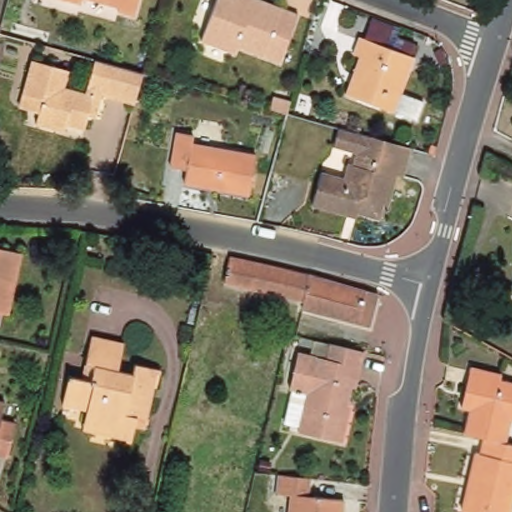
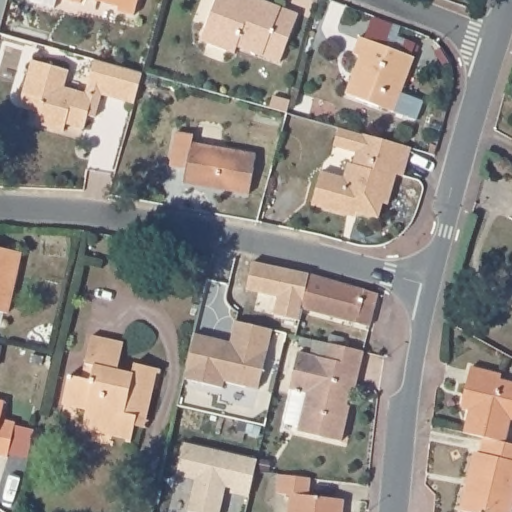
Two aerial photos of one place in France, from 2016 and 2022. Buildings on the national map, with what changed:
unchanged [(71,0),(83,0),(82,3),(71,0)]
unchanged [(119,12),(120,7),(93,0),(141,0),(136,17),(119,12)]
unchanged [(281,64),(239,47),(236,54),(202,41),(218,0),(262,0),(300,14),(281,64)]
unchanged [(354,52),(360,36),(413,57),(393,111),(345,92),(360,55),(354,52)]
unchanged [(21,95),(30,62),(66,72),(62,88),(84,94),(93,60),(127,70),(139,73),(130,105),(99,96),(93,119),(86,117),(82,130),(65,125),(62,134),(35,126),(38,114),(17,109),(21,95)]
unchanged [(291,101),(288,113),(270,108),(273,96),(291,101)]
unchanged [(320,171),(342,175),(351,151),(335,145),(340,130),(408,145),(383,210),(365,219),(311,202),(320,171)]
unchanged [(191,135),(190,144),(252,155),(245,195),(180,184),(182,170),(167,167),(174,132),(191,135)]
unchanged [(19,255),(5,315),(0,314),(0,250),(19,255)]
unchanged [(230,257),(303,275),(385,296),(378,319),(361,315),(358,324),(302,308),(303,302),(224,283),(230,257)]
new [(218,340),(230,344),(235,322),(272,331),(257,391),(223,382),(221,390),(183,380),(194,335),(218,340)]
unchanged [(299,430),(296,428),(306,390),(288,385),(297,350),(325,357),(329,342),(363,351),(354,386),(350,385),(342,413),(345,414),(343,423),(338,440),(299,430)]
unchanged [(77,389),(89,347),(120,355),(112,381),(127,385),(130,372),(155,378),(144,427),(134,425),(127,450),(106,445),(107,440),(79,434),(84,415),(59,409),(64,386),(77,389)]
unchanged [(504,442),(484,437),(465,433),(470,409),(461,406),(465,392),(471,366),(500,374),(499,380),(512,383),(512,417),(510,417),(504,442)]
unchanged [(6,400),(2,416),(17,420),(10,455),(0,454),(0,398),(6,400)]
unchanged [(484,437),(504,442),(512,444),(512,504),(510,512),(485,512),(472,512),(462,510),(467,486),(471,466),(475,451),(480,452),(484,437)]
new [(218,512),(192,512),(186,510),(194,478),(176,473),(184,441),(256,460),(249,492),(230,487),(225,486),(218,512)]
unchanged [(290,496),(275,495),(277,477),(309,480),(307,498),(343,503),(342,512),(288,512),(290,496)]

